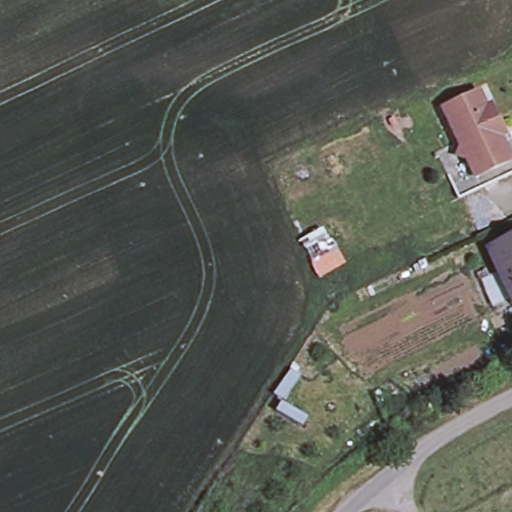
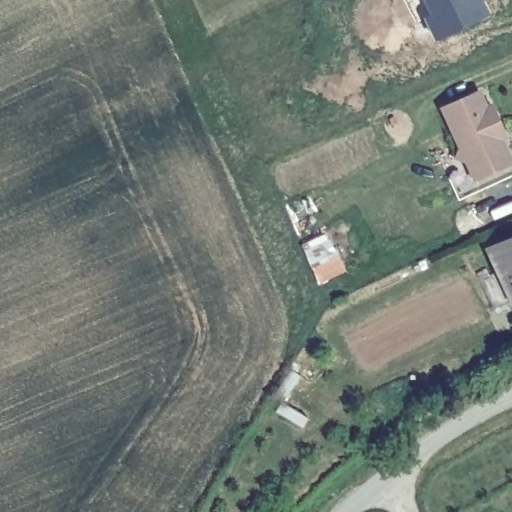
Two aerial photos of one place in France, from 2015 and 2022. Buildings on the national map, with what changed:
new [(436,43),(424,20),(431,17),(423,0),(484,0),(492,15),(436,43)]
unchanged [(469,173),(459,154),(452,152),(456,141),(438,105),(474,88),(482,104),(487,101),(499,129),(494,131),(506,156),(512,161),(512,168),(474,185),(469,173)]
unchanged [(512,226),(512,293),(486,237),(512,226)]

